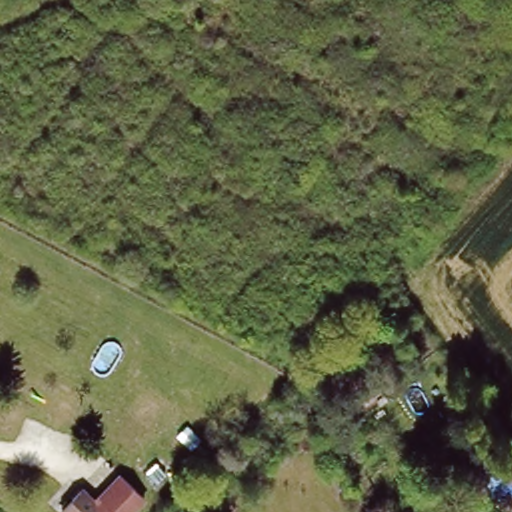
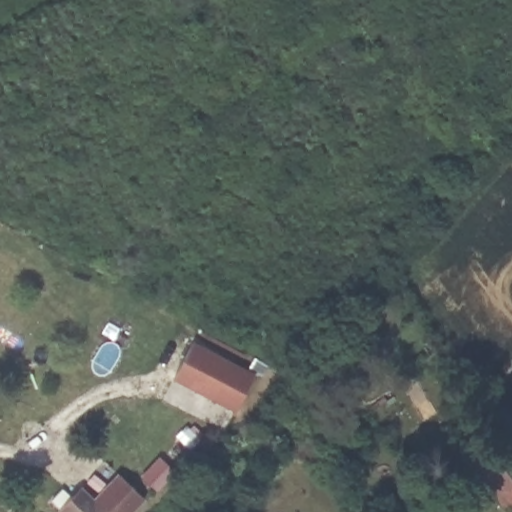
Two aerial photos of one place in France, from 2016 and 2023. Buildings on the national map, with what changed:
new [(265,379),(257,376),(239,412),(175,380),(195,343),(251,369),(256,356),(273,366),(265,379)]
unchanged [(503,473),(512,487),(512,503),(501,509),(485,484),(503,473)]
unchanged [(68,503),(77,494),(90,509),(117,487),(140,510),(138,512),(59,512),(68,503)]

